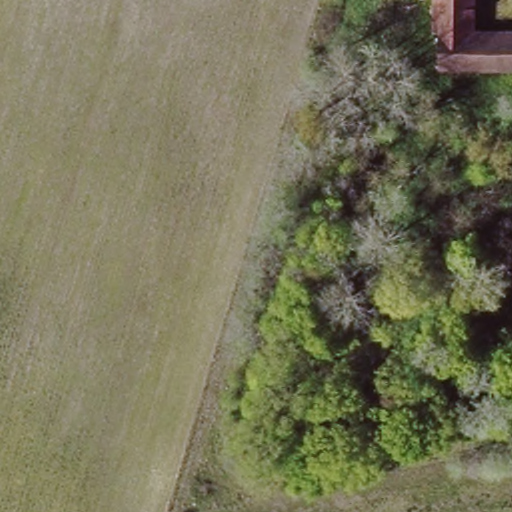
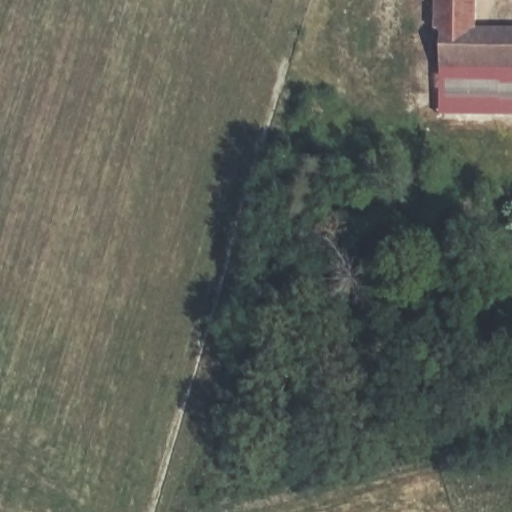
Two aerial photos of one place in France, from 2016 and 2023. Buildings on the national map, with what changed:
unchanged [(512,26),(512,64),(442,66),(441,24),(427,22),(427,0),(479,0),(479,26),(512,26)]
new [(438,66),(442,66),(512,64),(512,115),(437,115),(438,66)]

